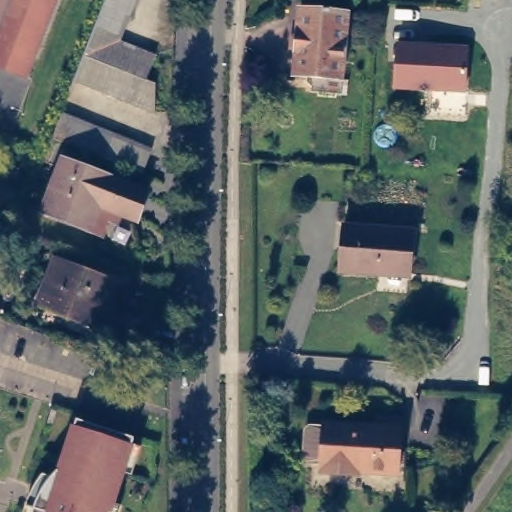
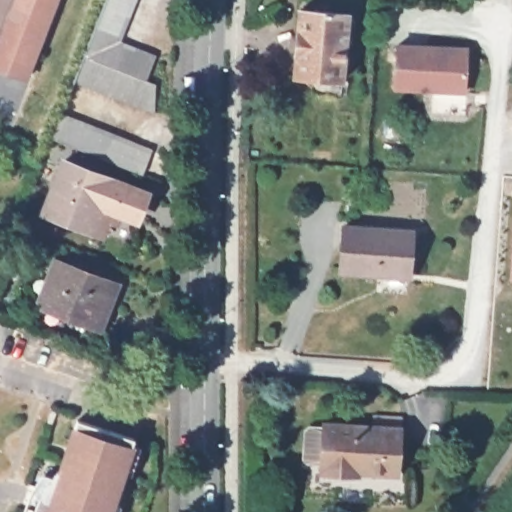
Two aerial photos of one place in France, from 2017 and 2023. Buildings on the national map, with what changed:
unchanged [(0,0),(60,0),(25,82),(0,72),(0,0)]
unchanged [(120,42),(156,57),(147,81),(155,85),(155,114),(75,81),(106,0),(136,0),(120,42)]
unchanged [(300,3),(348,9),(342,76),(293,72),(300,3)]
unchanged [(465,97),(392,92),(397,41),(467,46),(465,97)]
unchanged [(62,114),(152,150),(142,175),(52,139),(62,114)]
unchanged [(50,211),(68,161),(150,193),(140,220),(105,206),(96,229),(50,211)]
unchanged [(377,270),(340,267),(343,222),(413,227),(410,268),(378,266),(377,270)]
unchanged [(92,316),(36,297),(52,256),(108,276),(92,316)]
unchanged [(56,412),(52,425),(47,424),(52,411),(56,412)]
unchanged [(35,512),(35,510),(38,504),(42,498),(45,492),(49,487),(55,480),(60,478),(58,476),(77,425),(134,444),(112,512),(35,512)]
unchanged [(402,475),(362,472),(363,469),(327,467),(330,425),(405,429),(402,475)]

